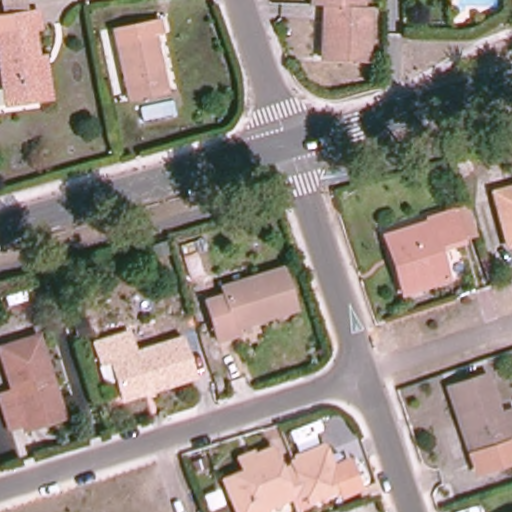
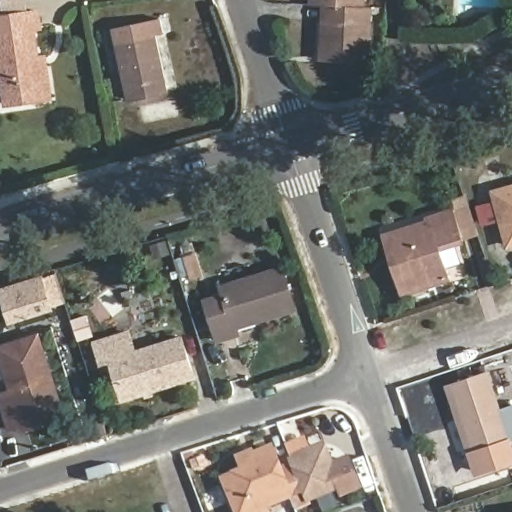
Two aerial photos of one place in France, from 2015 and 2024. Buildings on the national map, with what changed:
unchanged [(324,5),(318,5),(318,0),(358,0),(358,7),(324,5)]
unchanged [(363,59),(320,57),(321,21),(324,21),(324,5),(358,7),(365,7),(363,59)]
unchanged [(8,105),(0,48),(0,17),(40,11),(42,28),(35,29),(45,99),(8,105)]
unchanged [(113,28),(160,18),(164,34),(156,36),(169,94),(129,102),(113,28)]
unchanged [(458,165),(472,160),(475,169),(462,174),(458,165)]
unchanged [(512,186),(512,243),(504,245),(489,192),(512,186)]
unchanged [(440,279),(394,294),(388,275),(395,272),(383,233),(420,221),(419,218),(435,213),(459,205),(468,232),(444,241),(429,246),(440,279)]
unchanged [(237,327),(239,334),(218,340),(206,301),(225,295),(223,287),(283,268),(295,309),(237,327)]
new [(45,274),(56,309),(9,324),(0,296),(0,289),(45,274)]
unchanged [(158,287),(165,305),(155,309),(149,290),(158,287)]
unchanged [(111,360),(102,363),(96,343),(129,333),(135,353),(181,338),(194,377),(123,399),(111,360)]
unchanged [(0,348),(38,336),(45,356),(42,357),(57,406),(23,417),(26,424),(10,429),(0,397),(14,393),(0,348)]
unchanged [(512,437),(501,441),(507,459),(471,471),(442,385),(478,373),(491,412),(504,407),(512,431),(512,437)]
unchanged [(512,402),(512,407),(510,402),(512,402)]
unchanged [(266,512),(239,512),(225,480),(244,472),(241,464),(256,458),(255,456),(272,449),(281,469),(294,463),(293,462),(320,450),(328,469),(350,460),(363,489),(343,499),(338,490),(308,500),(305,492),(264,509),(266,512)]

